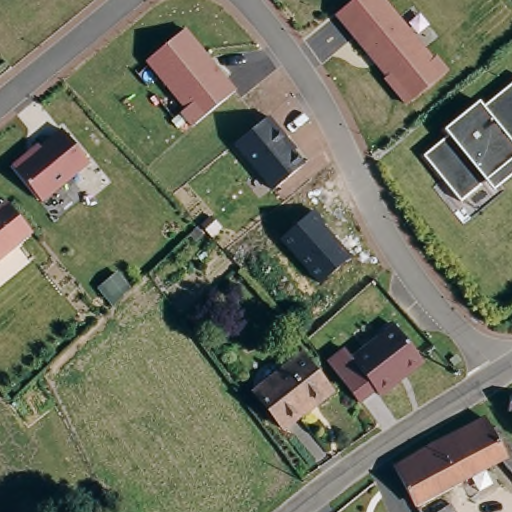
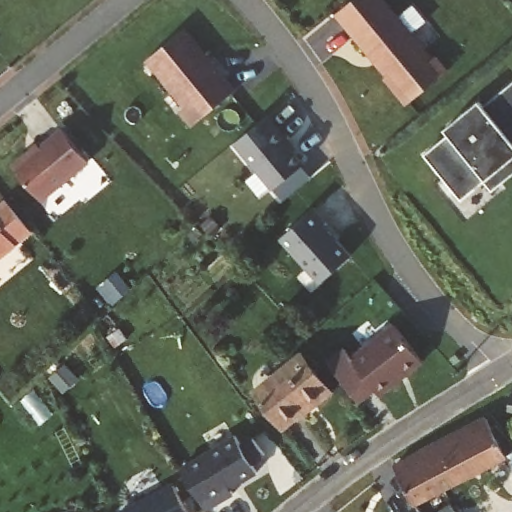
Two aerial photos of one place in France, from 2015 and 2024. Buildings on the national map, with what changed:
unchanged [(435,57),(437,54),(449,69),(408,101),(387,73),(388,72),(377,57),(380,56),(373,48),(371,50),(339,9),(350,0),(390,0),(435,57)]
unchanged [(188,25),(238,87),(218,104),(195,122),(183,108),(188,104),(160,68),(150,55),(188,25)]
unchanged [(489,181),(464,201),(426,154),(452,134),(447,129),(475,107),(483,101),(487,106),(512,86),(512,178),(496,190),(489,181)]
unchanged [(291,137),(288,139),(307,160),(305,163),(277,187),(258,165),(237,141),(255,127),(270,113),(291,137)]
unchanged [(85,161),(35,199),(8,164),(28,150),(30,152),(59,128),(85,161)]
unchanged [(3,198),(19,219),(27,229),(13,241),(0,251),(0,201),(3,198)]
unchanged [(327,223),(324,226),(353,257),(322,285),(280,240),(315,209),(327,223)]
unchanged [(381,397),(375,390),(359,405),(325,361),(345,347),(351,356),(393,325),(423,363),(381,397)]
unchanged [(301,353),(330,391),(317,402),(315,398),(280,425),(254,391),(301,353)]
unchanged [(512,412),(510,412),(511,394),(512,395),(512,412)]
unchanged [(416,502),(395,464),(486,414),(493,427),(497,426),(512,441),(512,470),(501,457),(416,502)]
new [(206,510),(182,466),(235,435),(241,444),(251,437),(265,455),(252,463),(257,472),(231,489),(233,494),(206,510)]
new [(188,512),(117,512),(172,482),(188,512)]
unchanged [(457,512),(438,512),(452,503),(457,512)]

